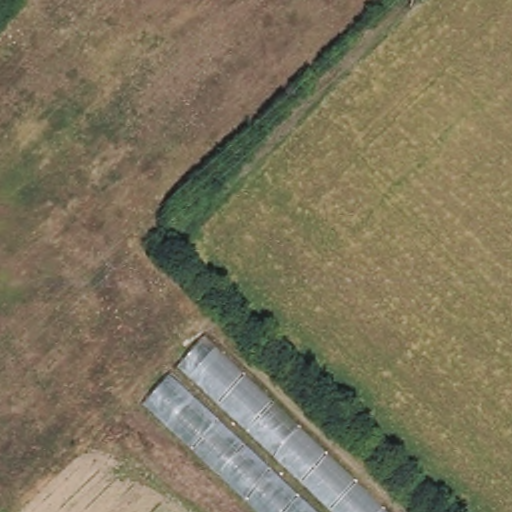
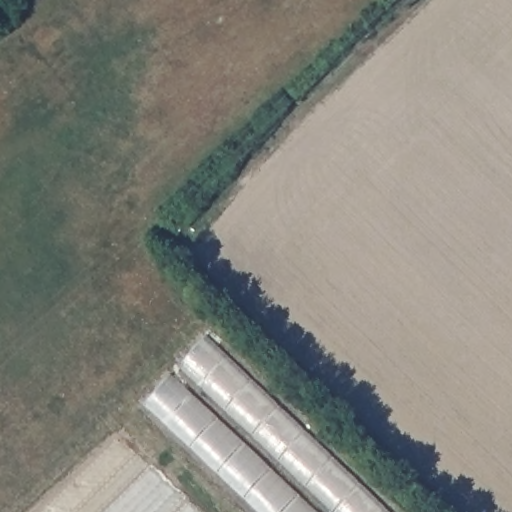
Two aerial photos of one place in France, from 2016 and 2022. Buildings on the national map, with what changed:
unchanged [(386,512),(267,512),(149,399),(205,338),(386,512)]

